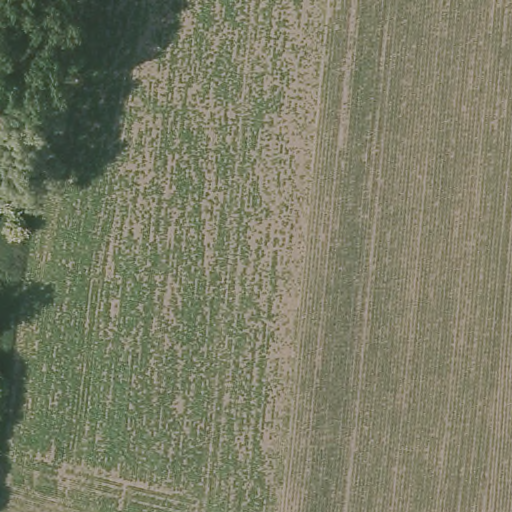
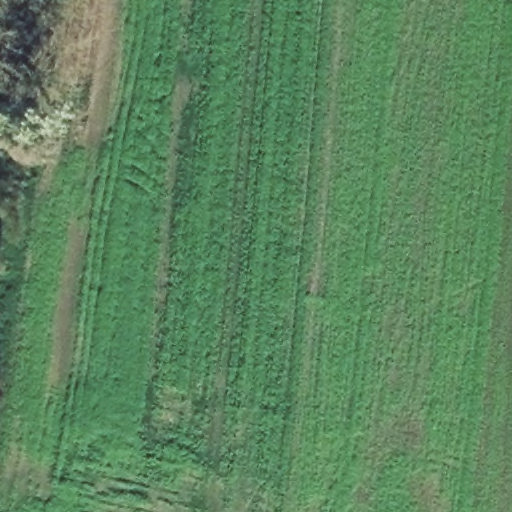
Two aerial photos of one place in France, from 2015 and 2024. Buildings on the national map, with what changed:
unchanged [(6,113),(0,132),(0,111),(6,113)]

